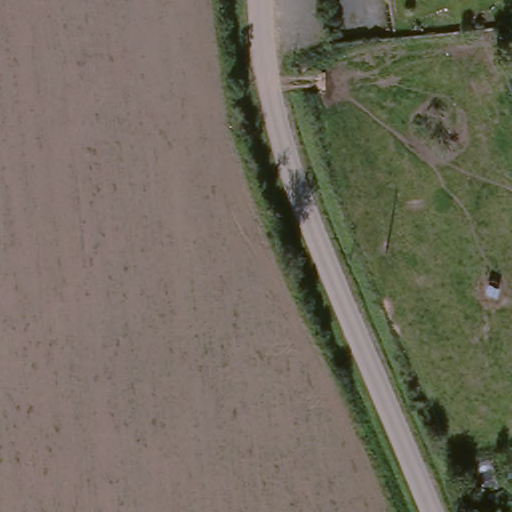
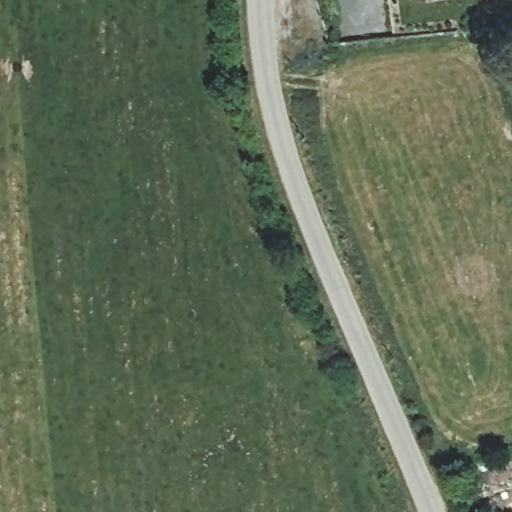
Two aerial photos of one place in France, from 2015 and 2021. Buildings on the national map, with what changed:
unchanged [(489,478),(473,477),(473,494),(464,494),(464,465),(487,463),(489,478)]

